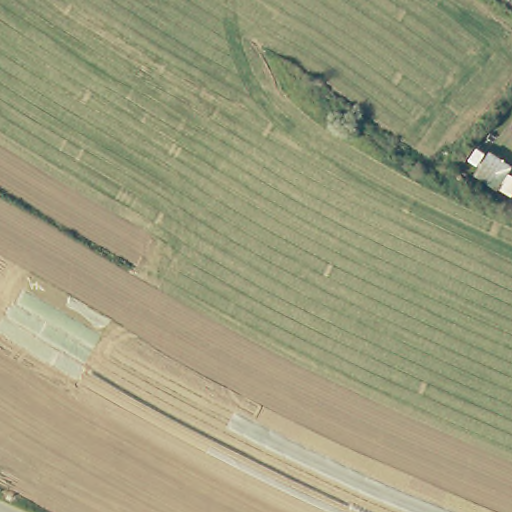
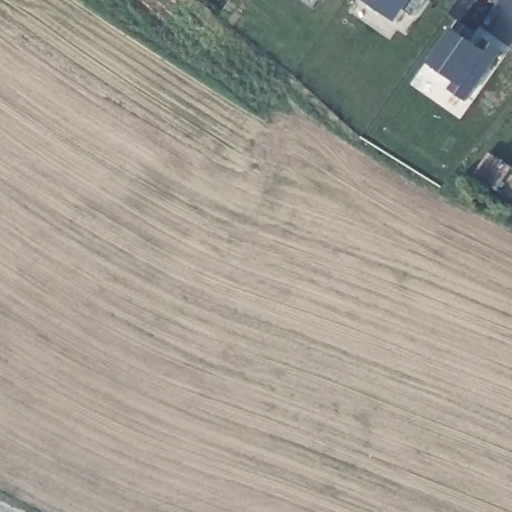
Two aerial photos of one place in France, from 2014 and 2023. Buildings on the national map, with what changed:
new [(366,0),(424,0),(413,15),(404,10),(396,23),(365,1),(366,0)]
new [(459,22),(478,33),(476,44),(483,49),(487,42),(501,51),(468,100),(452,91),(458,83),(430,64),(459,22)]

